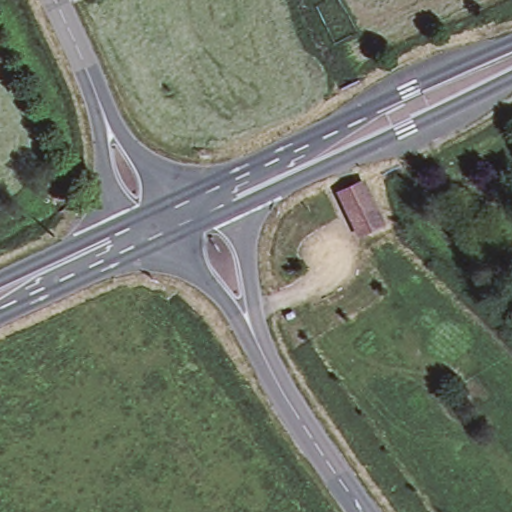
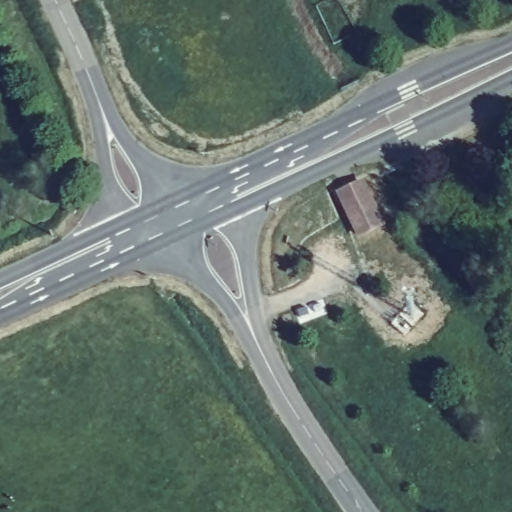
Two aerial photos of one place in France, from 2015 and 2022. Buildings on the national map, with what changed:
unchanged [(382,225),(361,235),(340,191),(361,182),(382,225)]

